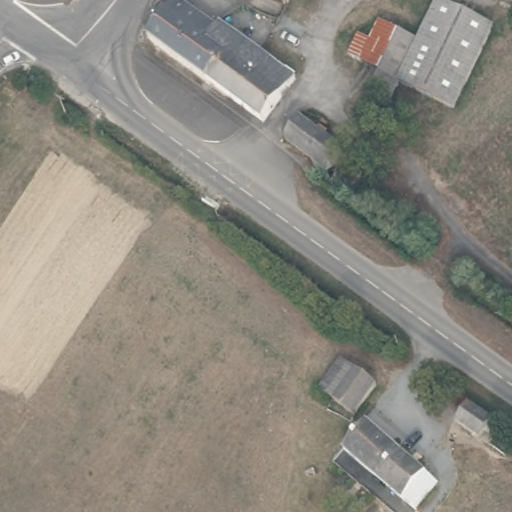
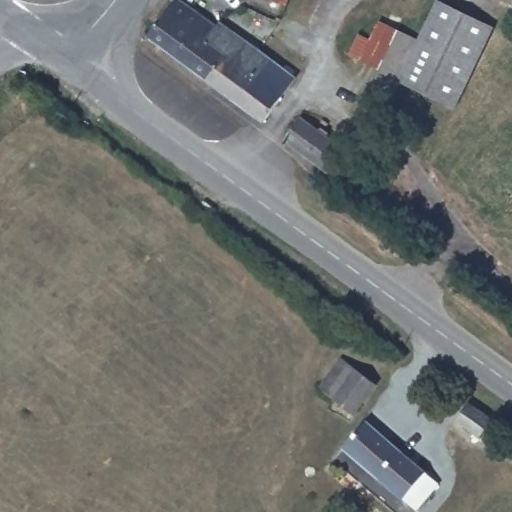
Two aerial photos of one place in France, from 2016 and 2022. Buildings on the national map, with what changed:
unchanged [(267,0),(285,0),(282,7),(267,0)]
unchanged [(421,40),(440,0),(441,0),(495,27),(458,106),(403,80),(380,128),(368,123),(381,96),(372,89),(378,70),(351,57),(360,35),(376,40),(383,24),(421,40)]
unchanged [(223,58),(206,84),(150,40),(179,2),(216,27),(205,45),(223,58)]
unchanged [(295,80),(263,127),(206,84),(223,58),(205,45),(216,27),(218,24),(295,80)]
unchanged [(326,175),(282,145),(298,121),(341,152),(326,175)]
unchanged [(317,388),(340,358),(377,386),(355,417),(317,388)]
unchanged [(477,439),(455,422),(467,402),(491,420),(477,439)]
unchanged [(425,472),(402,501),(341,450),(365,422),(425,472)]

